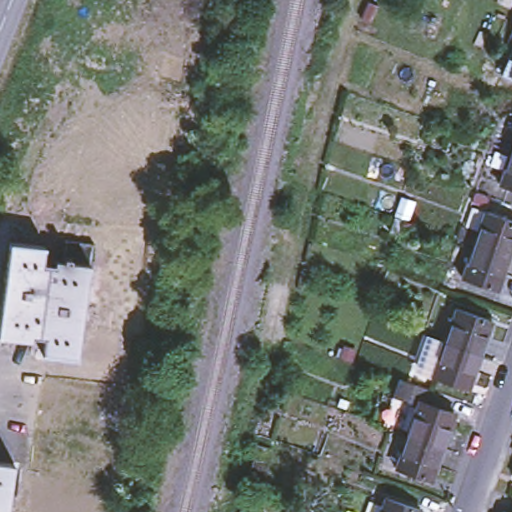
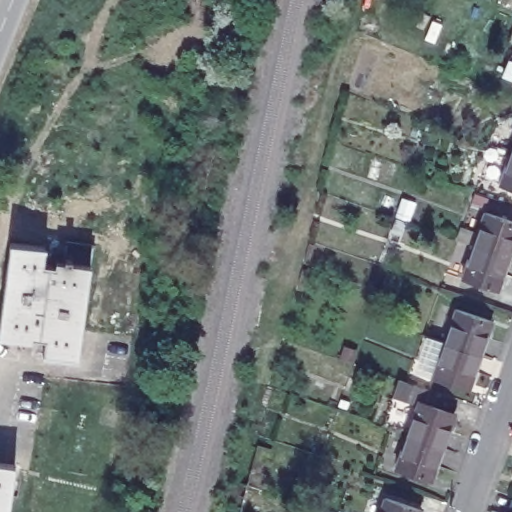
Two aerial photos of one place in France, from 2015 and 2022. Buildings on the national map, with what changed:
unchanged [(512,61),(512,82),(504,79),(512,61)]
unchanged [(512,137),(512,152),(508,150),(512,137)]
unchanged [(508,150),(512,152),(512,187),(497,181),(508,150)]
unchanged [(512,238),(508,252),(472,239),(483,207),(512,217),(512,238)]
unchanged [(41,348),(41,345),(43,345),(45,331),(33,329),(32,334),(0,329),(0,284),(3,262),(4,262),(7,236),(43,240),(41,257),(53,259),(55,254),(60,254),(63,234),(90,238),(88,258),(87,260),(89,261),(76,353),(41,348)]
unchanged [(497,285),(461,273),(472,239),(508,252),(497,285)]
unchanged [(434,368),(422,364),(433,331),(444,336),(455,305),(491,317),(480,349),(469,381),(434,368)]
unchanged [(401,396),(407,379),(434,389),(429,405),(460,415),(449,447),(413,434),(424,404),(401,396)]
unchanged [(438,481),(401,468),(413,434),(449,447),(438,481)]
unchanged [(13,461),(6,512),(0,512),(0,459),(13,461)]
unchanged [(427,505),(424,512),(384,512),(391,493),(427,505)]

